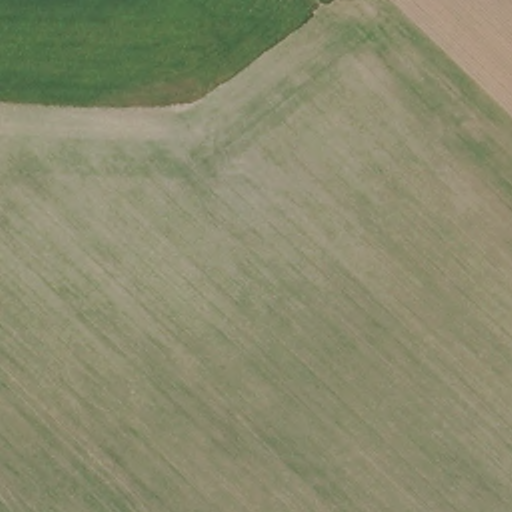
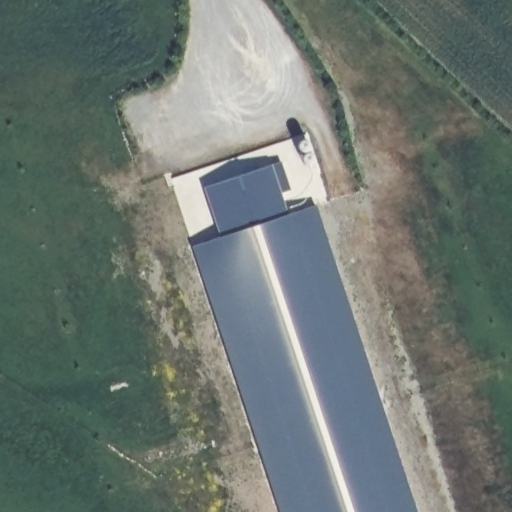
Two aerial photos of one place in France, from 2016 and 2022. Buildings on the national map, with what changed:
new [(219,231),(204,184),(280,159),(288,186),(284,188),(287,207),(316,198),(419,512),(282,512),(192,242),(219,231)]

